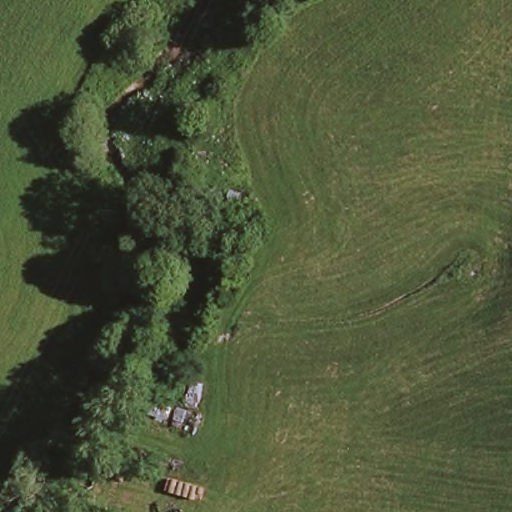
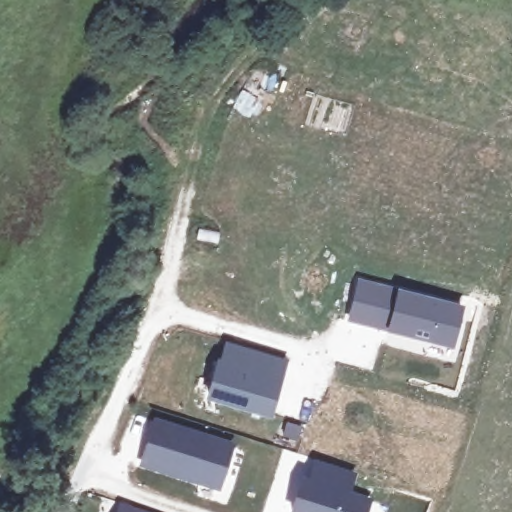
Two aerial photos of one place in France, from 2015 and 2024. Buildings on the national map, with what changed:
new [(357,276),(465,305),(453,348),(346,322),(357,276)]
new [(275,359),(265,386),(276,390),(269,414),(208,396),(218,363),(222,364),(227,347),(275,359)]
new [(150,414),(237,441),(220,492),(135,467),(150,414)]
new [(306,456),(358,472),(353,490),(373,497),(368,512),(288,512),(306,456)]
new [(118,504),(147,512),(116,512),(118,504)]

